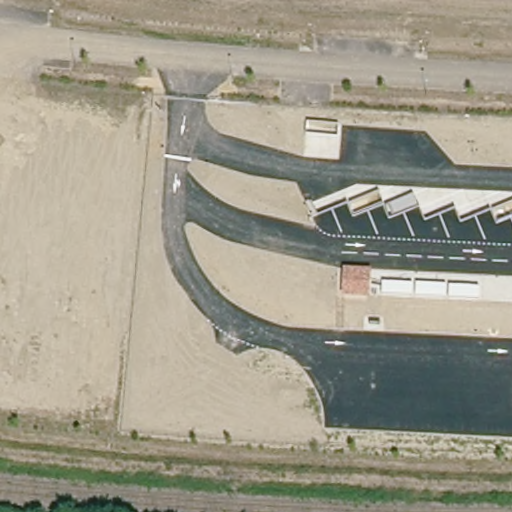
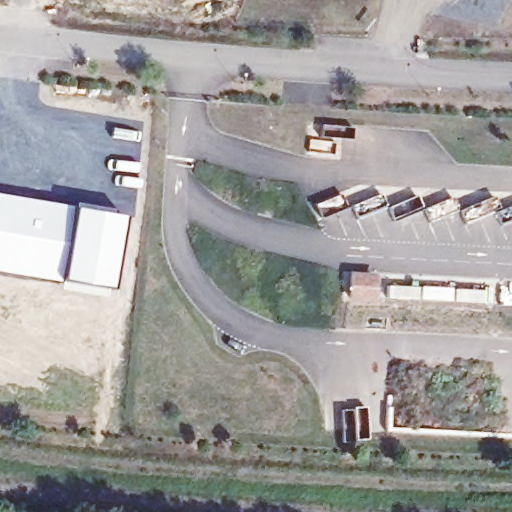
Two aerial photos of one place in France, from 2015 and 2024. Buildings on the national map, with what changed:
new [(105,296),(57,288),(58,283),(0,273),(0,194),(120,214),(105,296)]
unchanged [(368,300),(340,298),(342,271),(370,273),(368,300)]

